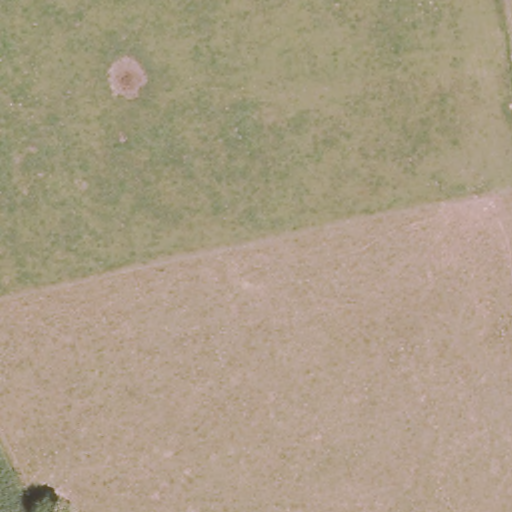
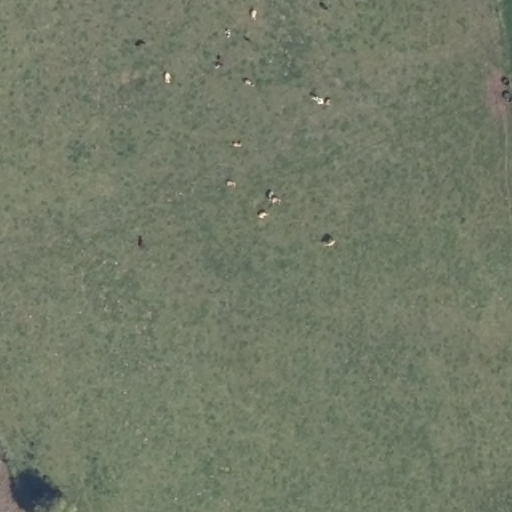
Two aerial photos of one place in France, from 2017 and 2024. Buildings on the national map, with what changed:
unchanged [(52,498),(53,510),(42,510),(41,499),(52,498)]

